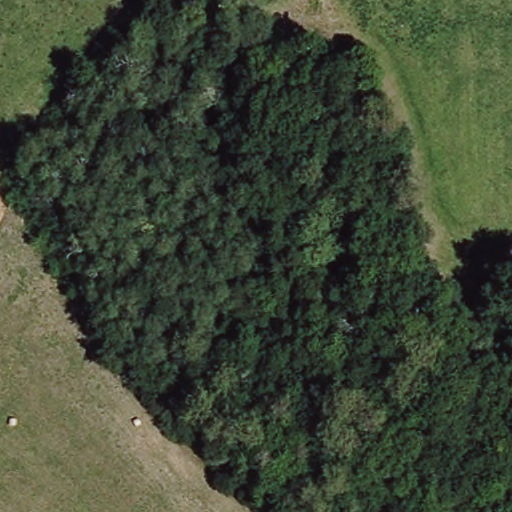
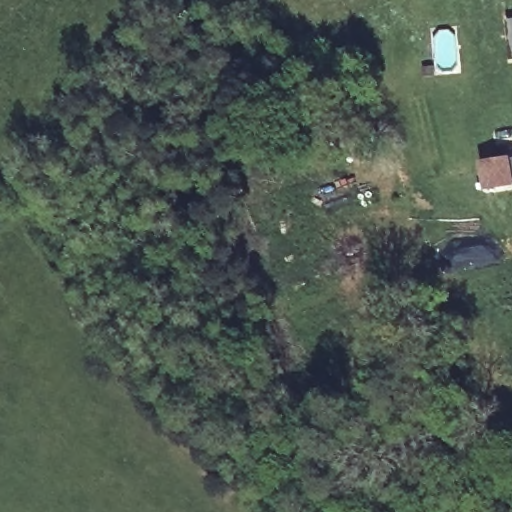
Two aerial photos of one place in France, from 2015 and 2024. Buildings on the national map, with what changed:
new [(505,22),(512,22),(512,60),(507,60),(505,22)]
new [(512,164),(512,185),(502,187),(477,191),(473,166),(499,162),(512,160),(512,164)]

